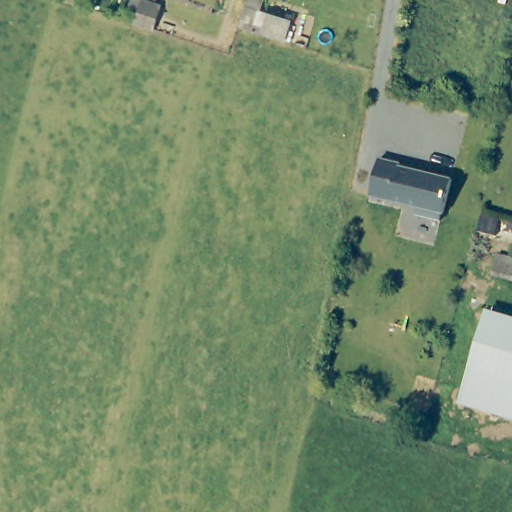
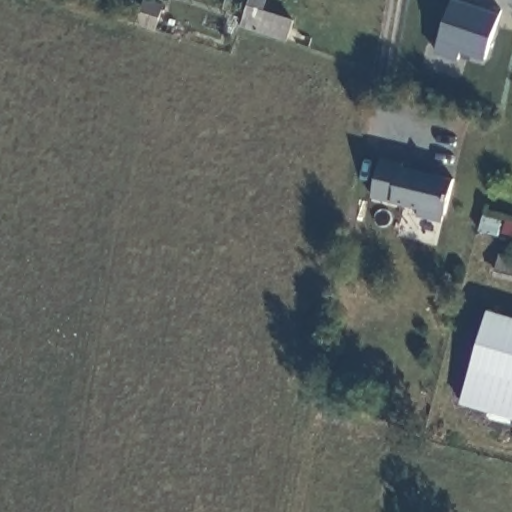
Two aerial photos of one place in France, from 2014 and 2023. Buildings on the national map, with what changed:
unchanged [(159,23),(140,17),(146,0),(166,0),(159,23)]
new [(481,8),(483,2),(501,9),(500,13),(487,61),(460,52),(458,61),(434,54),(452,0),(457,0),(481,8)]
unchanged [(287,38),(259,30),(242,24),(251,1),(267,6),(265,12),(292,20),(287,38)]
unchanged [(413,215),(415,208),(370,197),(380,158),(402,164),(400,167),(451,180),(441,222),(413,215)]
unchanged [(491,274),(496,255),(512,259),(512,280),(491,274)]
unchanged [(512,316),(512,412),(463,394),(490,308),(512,316)]

